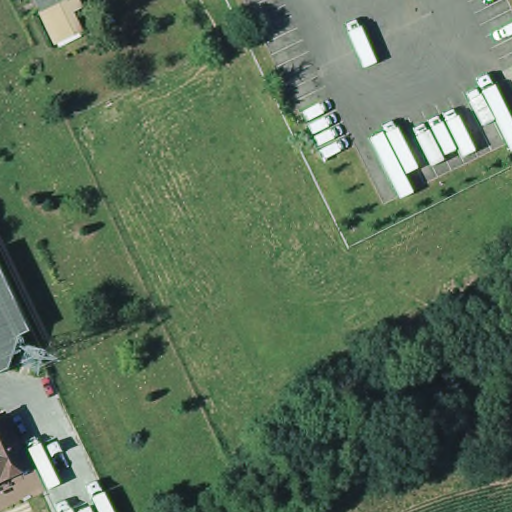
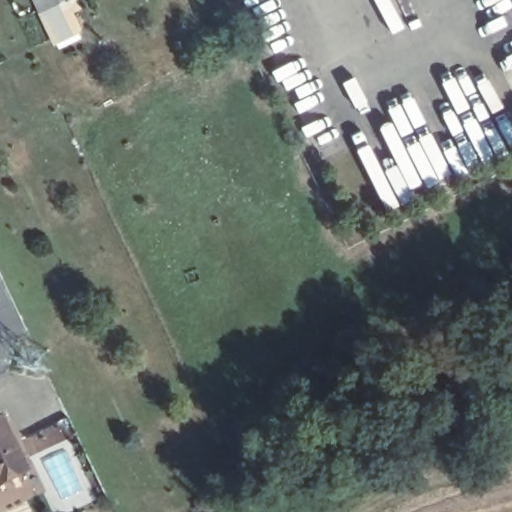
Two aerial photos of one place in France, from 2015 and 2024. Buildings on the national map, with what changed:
unchanged [(15,335),(4,368),(0,370),(0,280),(25,330),(15,335)]
unchanged [(29,470),(0,483),(0,420),(7,417),(29,470)]

